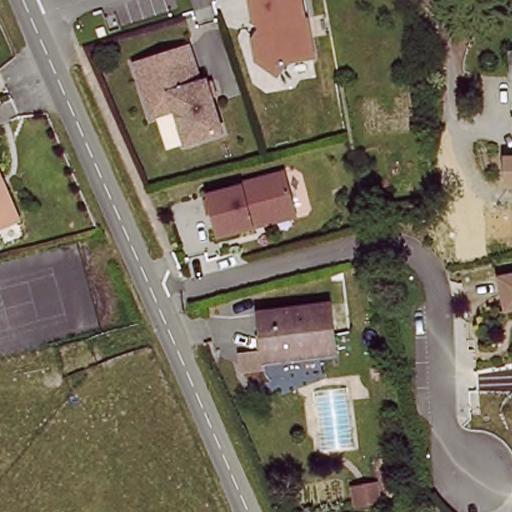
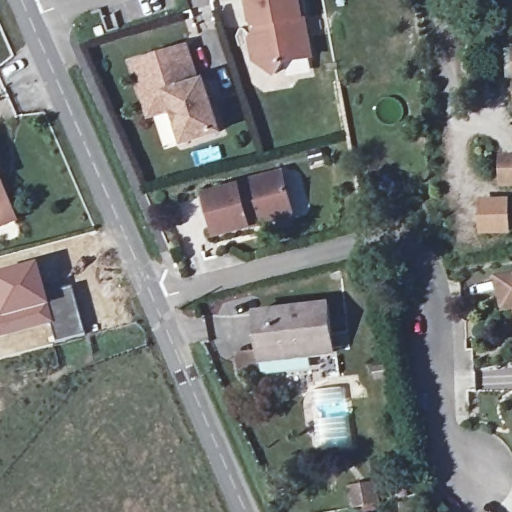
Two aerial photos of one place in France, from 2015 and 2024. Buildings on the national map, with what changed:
unchanged [(306,34),(310,50),(314,63),(313,64),(277,73),(253,60),(260,47),(255,25),(251,24),(245,0),(295,0),(299,15),(301,15),(306,34)]
unchanged [(147,108),(135,70),(188,53),(201,90),(206,89),(222,140),(187,151),(175,117),(166,120),(152,125),(147,108)]
unchanged [(503,159),(512,159),(512,186),(503,186),(503,159)]
unchanged [(248,230),(214,240),(203,199),(237,190),(236,186),(279,174),(289,210),(291,219),(248,230)]
unchanged [(0,227),(0,200),(8,225),(0,227)]
new [(47,296),(71,290),(84,335),(55,344),(50,326),(0,341),(0,278),(38,265),(47,296)]
unchanged [(502,311),(495,283),(512,280),(512,309),(502,311)]
unchanged [(253,311),(332,300),(342,350),(315,355),(263,364),(261,348),(253,311)]
unchanged [(247,386),(243,367),(263,364),(267,382),(247,386)]
unchanged [(355,509),(352,491),(379,486),(382,506),(355,509)]

